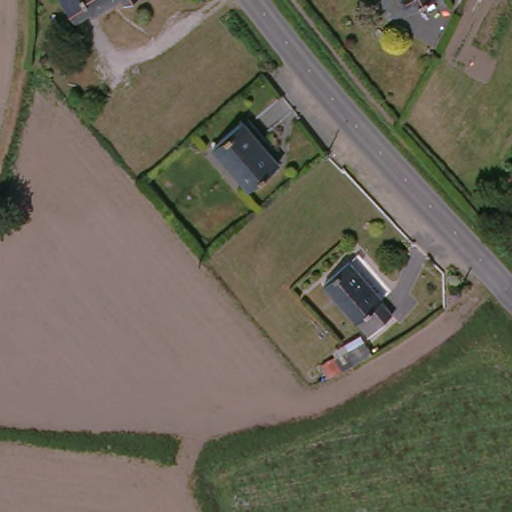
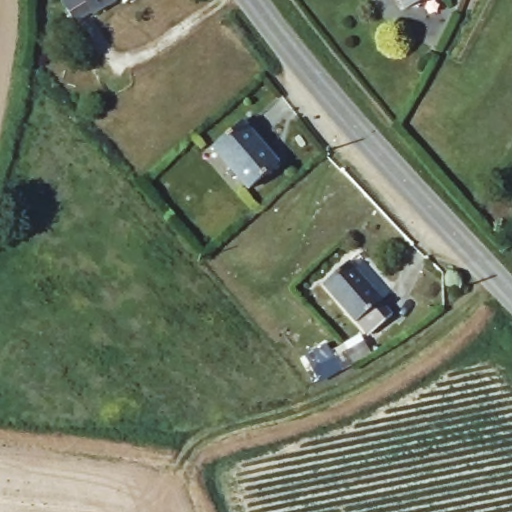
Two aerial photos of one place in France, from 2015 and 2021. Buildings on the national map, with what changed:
unchanged [(91,13),(76,24),(57,0),(118,0),(94,17),(91,13)]
unchanged [(121,0),(129,0),(124,3),(121,0)]
unchanged [(426,0),(404,12),(397,0),(426,0)]
unchanged [(245,192),(210,152),(238,127),(273,167),(245,192)]
unchanged [(375,300),(369,306),(384,321),(364,340),(318,292),(314,288),(341,265),(344,268),(375,300)]

